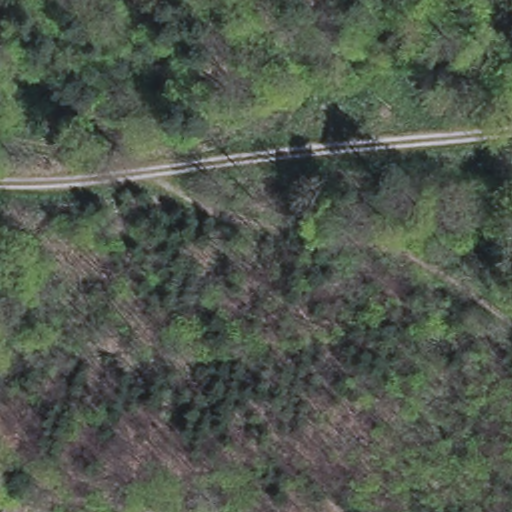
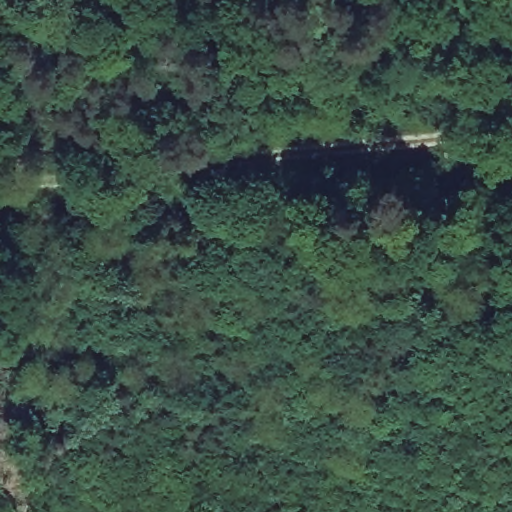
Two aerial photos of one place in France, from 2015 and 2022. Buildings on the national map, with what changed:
[]

